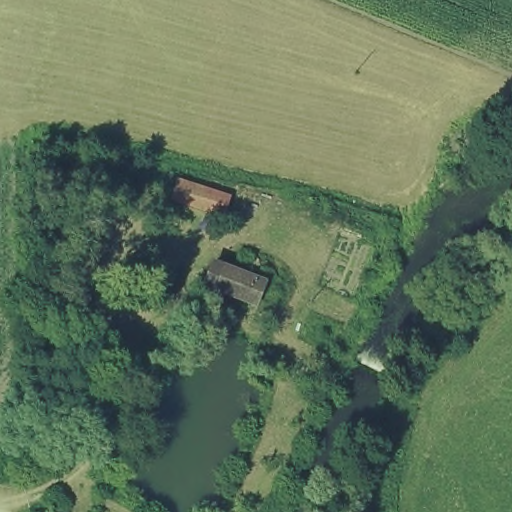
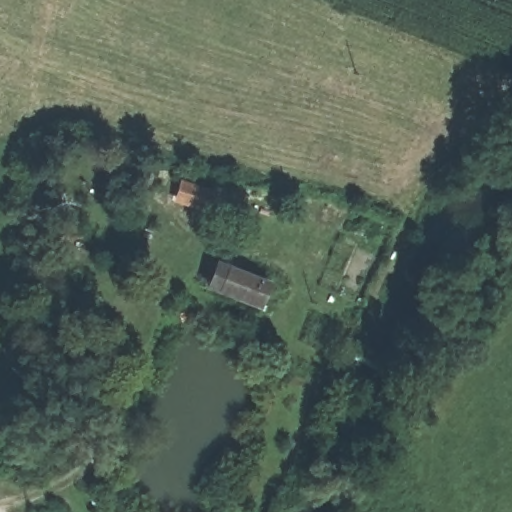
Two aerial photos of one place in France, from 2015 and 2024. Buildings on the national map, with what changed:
unchanged [(228,220),(175,202),(181,179),(235,193),(228,220)]
unchanged [(207,288),(217,258),(271,278),(260,307),(207,288)]

